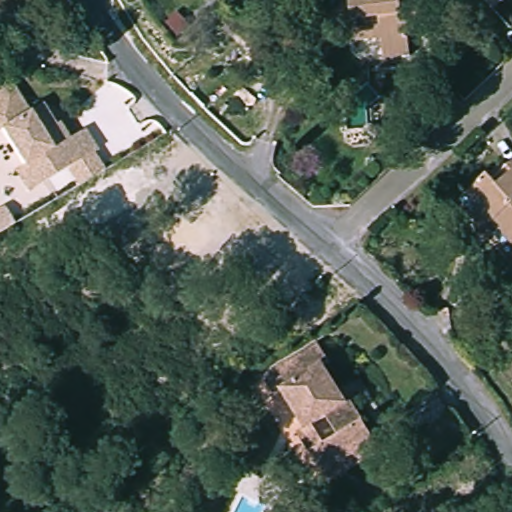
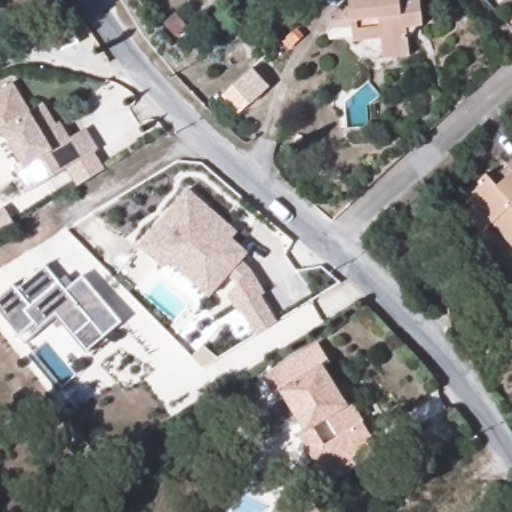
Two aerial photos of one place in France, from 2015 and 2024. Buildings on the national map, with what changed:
unchanged [(410,27),(412,57),(383,59),(382,37),(359,39),(357,0),(425,0),(427,26),(410,27)]
unchanged [(72,137),(88,128),(100,149),(46,181),(34,160),(27,164),(5,127),(0,130),(0,91),(16,82),(33,111),(46,103),(58,123),(62,121),(72,137)]
unchanged [(466,202),(460,195),(478,177),(487,176),(510,153),(512,155),(512,249),(488,225),(478,234),(457,211),(466,202)]
unchanged [(34,160),(46,181),(30,190),(18,168),(27,163),(27,164),(34,160)]
new [(229,223),(236,228),(230,235),(246,248),(238,256),(248,264),(263,288),(259,291),(275,318),(255,331),(239,304),(236,305),(227,291),(236,279),(227,271),(221,277),(179,242),(166,258),(161,263),(137,242),(186,186),(229,223)]
unchanged [(2,236),(0,237),(0,213),(6,210),(16,227),(2,236)]
new [(179,242),(221,277),(206,293),(166,258),(179,242)]
new [(60,280),(65,275),(72,284),(82,275),(123,323),(87,353),(56,317),(25,344),(19,336),(0,314),(0,294),(13,283),(17,288),(45,265),(60,280)]
new [(193,355),(203,347),(210,356),(201,364),(193,355)]
unchanged [(357,471),(323,491),(304,460),(293,440),(304,432),(283,397),(273,400),(262,381),(320,347),(332,365),(325,371),(346,406),(353,403),(375,439),(385,454),(357,471)]

